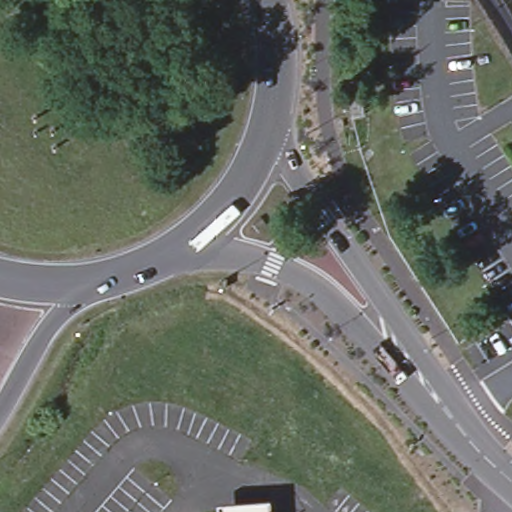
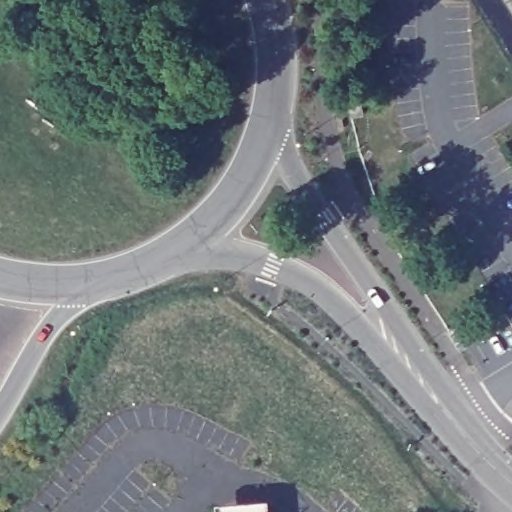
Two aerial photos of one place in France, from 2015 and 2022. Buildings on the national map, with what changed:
unchanged [(213,498),(269,495),(270,512),(214,512),(213,498)]

